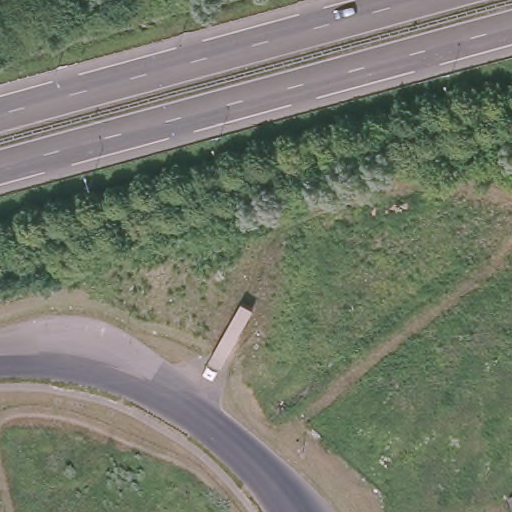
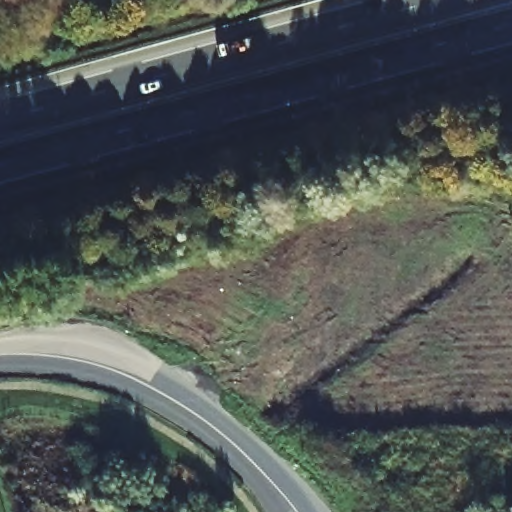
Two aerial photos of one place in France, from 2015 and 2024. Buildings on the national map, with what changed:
unchanged [(510,500),(512,499),(512,512),(509,512),(506,501),(510,500)]

